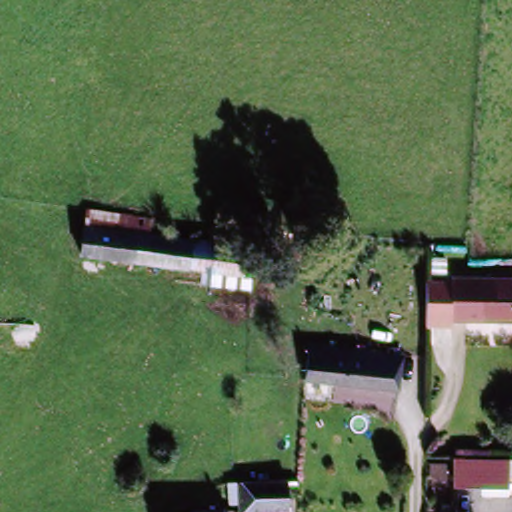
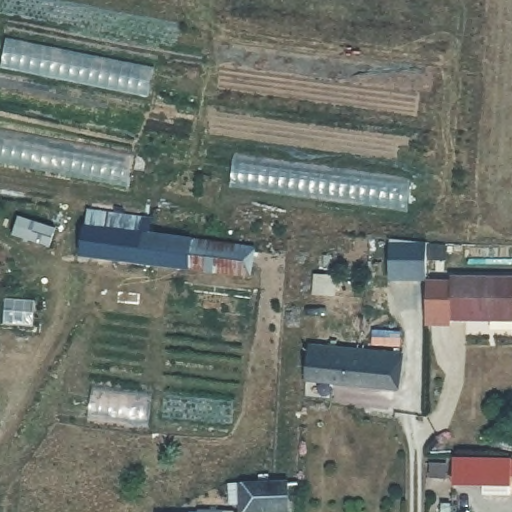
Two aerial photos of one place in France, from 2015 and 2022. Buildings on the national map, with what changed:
new [(145,95),(0,69),(0,61),(6,39),(151,67),(145,95)]
new [(127,190),(0,166),(0,130),(131,155),(127,190)]
new [(408,179),(405,212),(229,189),(234,156),(408,179)]
unchanged [(141,260),(80,251),(84,229),(145,237),(141,260)]
unchanged [(192,244),(189,267),(141,260),(145,237),(192,244)]
new [(425,243),(422,278),(390,278),(390,243),(425,243)]
unchanged [(252,252),(250,275),(189,267),(192,244),(252,252)]
unchanged [(512,280),(512,322),(427,322),(427,282),(512,280)]
demolished [(38,355),(0,354),(0,327),(40,330),(38,355)]
unchanged [(386,391),(313,385),(315,360),(315,352),(400,359),(400,367),(398,392),(386,391)]
unchanged [(450,455),(450,468),(435,467),(435,455),(450,455)]
unchanged [(460,461),(512,463),(512,485),(458,484),(460,461)]
unchanged [(288,488),(288,512),(241,512),(242,488),(288,488)]

